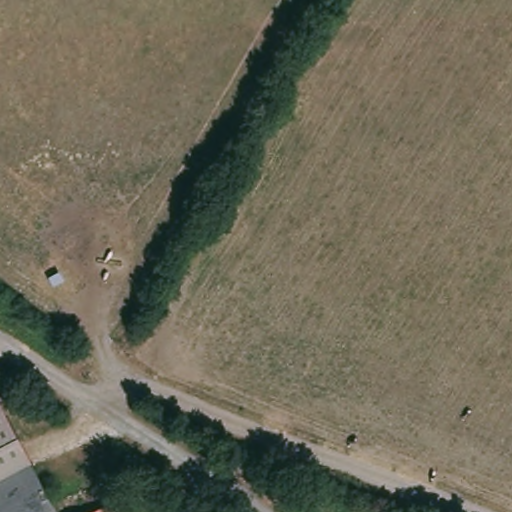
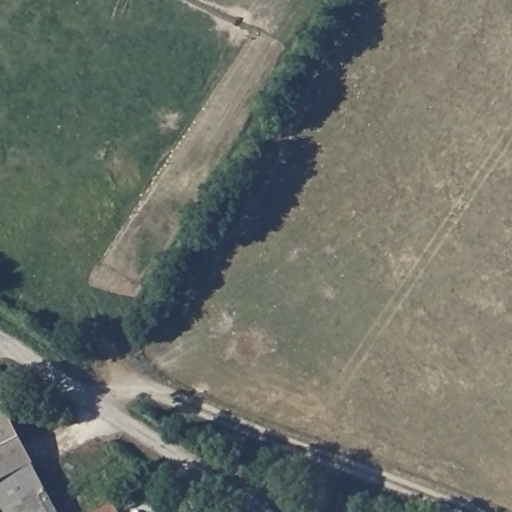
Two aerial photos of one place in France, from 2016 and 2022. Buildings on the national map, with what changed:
unchanged [(34,465),(0,482),(0,405),(1,405),(34,465)]
unchanged [(58,512),(0,512),(0,482),(34,465),(58,512)]
unchanged [(121,512),(103,512),(117,505),(121,512)]

